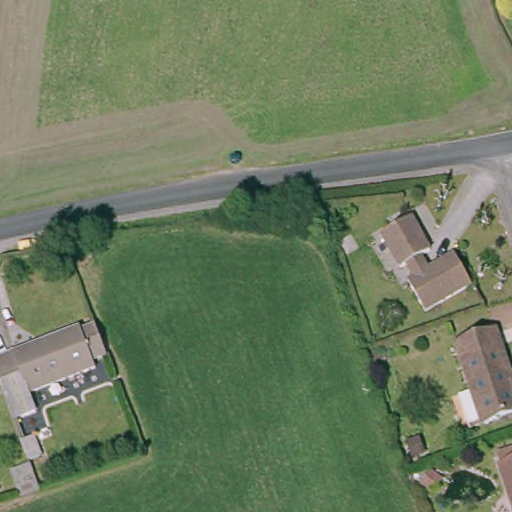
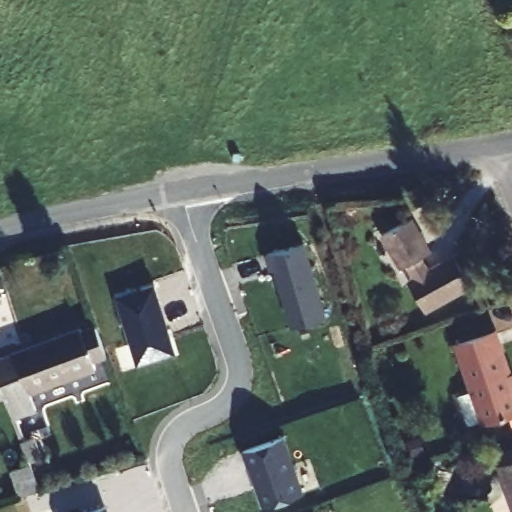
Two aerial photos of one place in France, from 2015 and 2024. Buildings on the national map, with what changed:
unchanged [(422,281),(411,262),(404,267),(390,244),(420,225),(434,247),(425,254),(437,272),(461,258),(478,286),(429,313),(412,286),(422,281)]
new [(328,315),(289,325),(267,249),(305,239),(328,315)]
new [(116,293),(155,281),(177,351),(137,363),(116,293)]
unchanged [(27,399),(0,407),(0,405),(0,356),(100,323),(110,360),(24,387),(27,399)]
unchanged [(487,391),(469,340),(505,327),(512,351),(512,417),(484,428),(472,396),(487,391)]
new [(305,490),(262,506),(245,447),(287,436),(305,490)]
new [(85,512),(107,504),(110,512),(85,512)]

